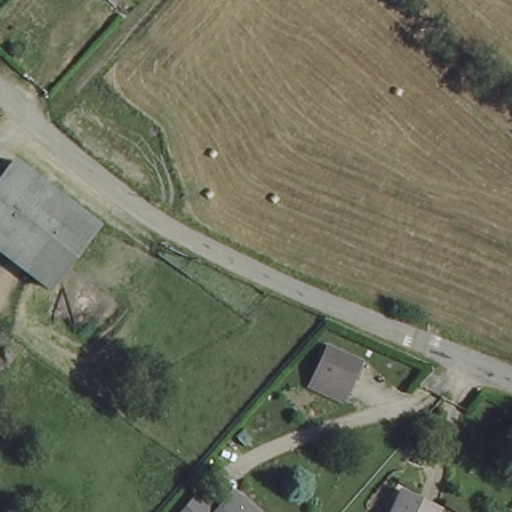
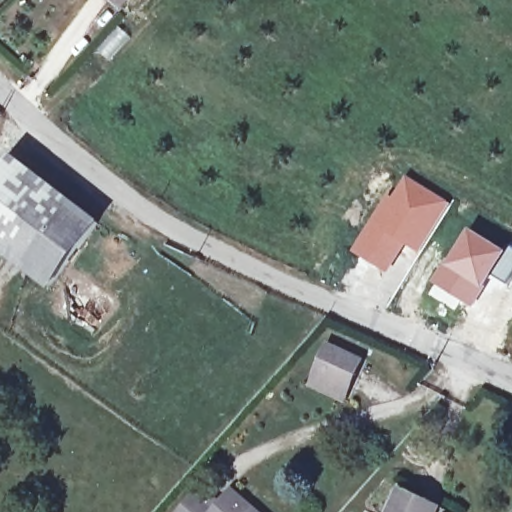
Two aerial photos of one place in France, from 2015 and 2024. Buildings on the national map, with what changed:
unchanged [(113,2),(110,0),(115,0),(113,2)]
unchanged [(96,221),(52,288),(0,252),(0,175),(9,161),(96,221)]
new [(389,193),(393,195),(407,174),(452,202),(419,255),(406,246),(388,273),(352,251),(389,193)]
new [(508,285),(492,276),(472,307),(432,283),(471,228),(508,250),(512,245),(512,278),(508,285)]
unchanged [(344,405),(304,388),(324,340),(365,357),(344,405)]
unchanged [(215,512),(234,488),(259,512),(215,512)]
unchanged [(439,508),(437,512),(390,512),(400,490),(439,508)]
unchanged [(205,512),(180,512),(195,493),(210,507),(205,512)]

